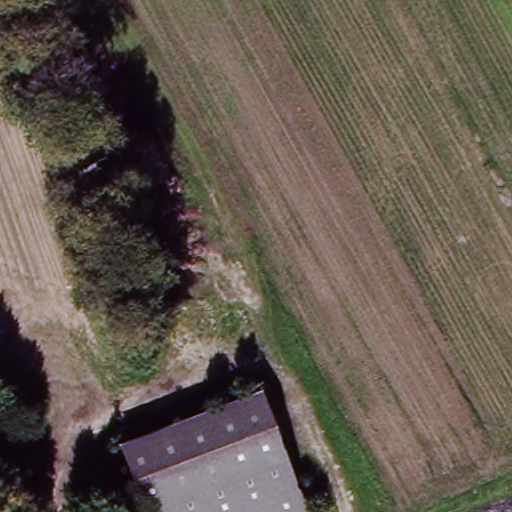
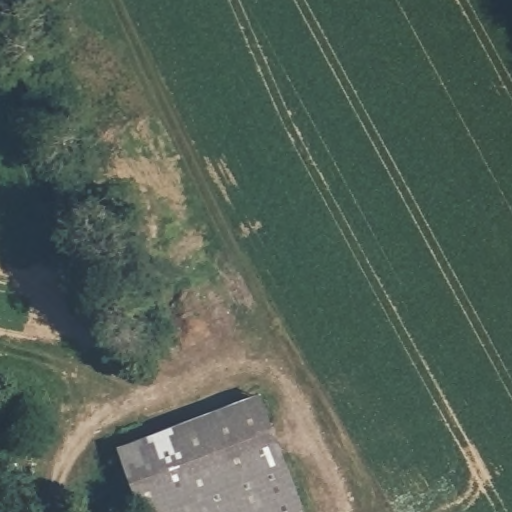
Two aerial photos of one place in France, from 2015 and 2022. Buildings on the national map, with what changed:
unchanged [(262,397),(304,512),(139,512),(118,452),(262,397)]

